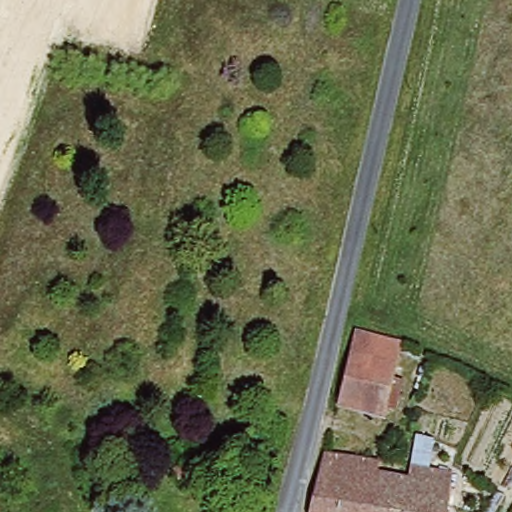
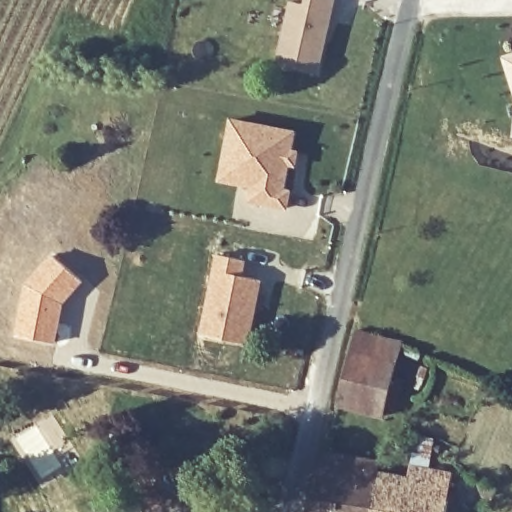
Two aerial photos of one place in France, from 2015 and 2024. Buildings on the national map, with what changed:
new [(319,74),(276,61),(290,1),(304,5),(305,0),(336,0),(319,74)]
new [(503,57),(512,55),(512,86),(503,57)]
new [(289,209),(248,201),(251,186),(219,181),(231,119),(297,131),(293,149),(300,151),(297,167),(291,165),(285,187),(292,190),(289,209)]
new [(24,285),(51,253),(84,282),(65,304),(56,343),(13,335),(24,285)]
new [(250,344),(201,332),(217,255),(247,260),(243,276),(262,280),(250,344)]
unchanged [(337,403),(355,331),(400,342),(381,414),(337,403)]
unchanged [(379,462),(378,472),(372,512),(311,512),(325,453),(379,462)]
unchanged [(425,468),(452,471),(445,512),(372,512),(378,472),(409,475),(412,455),(427,456),(425,468)]
unchanged [(207,512),(186,512),(198,501),(207,512)]

